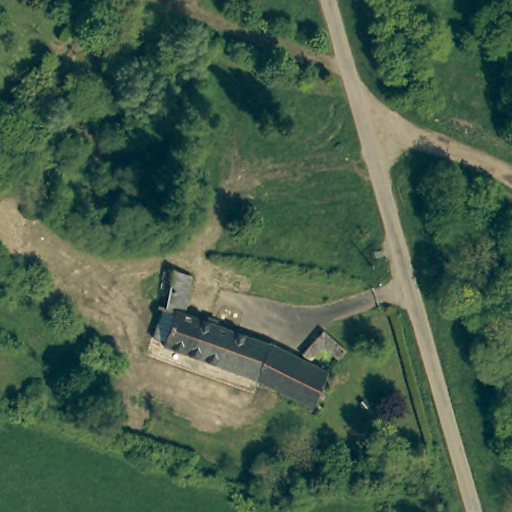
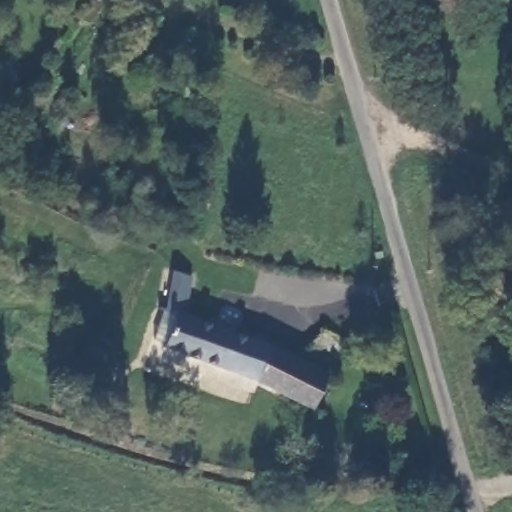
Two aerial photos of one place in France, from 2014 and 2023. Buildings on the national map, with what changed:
unchanged [(351,345),(332,362),(318,401),(168,342),(176,310),(170,308),(175,272),(191,275),(188,315),(304,356),(327,326),(351,345)]

